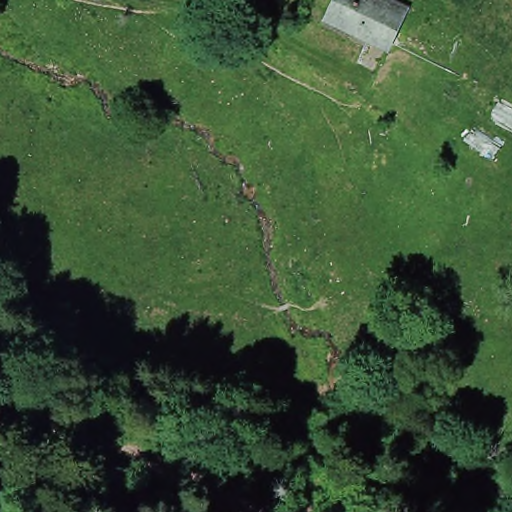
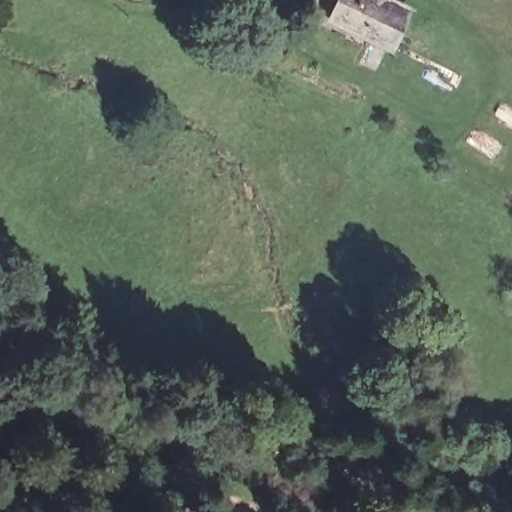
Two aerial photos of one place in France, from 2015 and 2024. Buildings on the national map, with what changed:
unchanged [(338,0),(398,0),(415,7),(394,52),(328,24),(338,0)]

